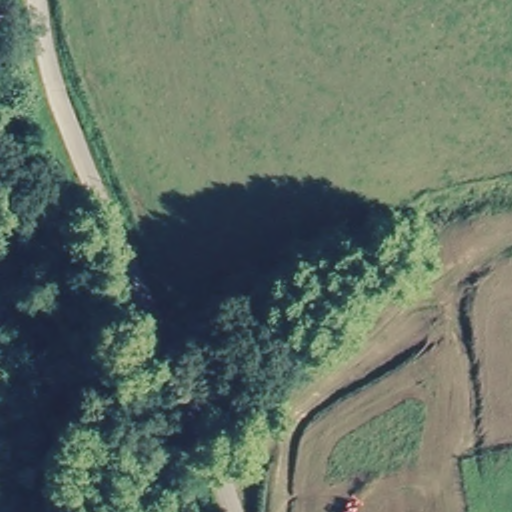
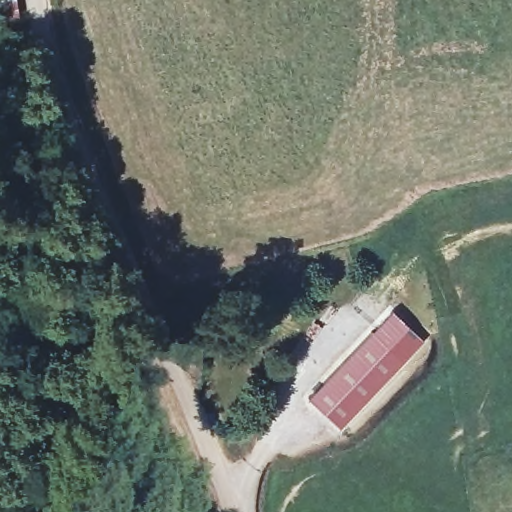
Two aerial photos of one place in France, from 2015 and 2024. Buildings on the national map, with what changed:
new [(396,315),(429,347),(407,369),(375,337),(396,315)]
new [(375,337),(407,369),(344,433),(312,401),(375,337)]

